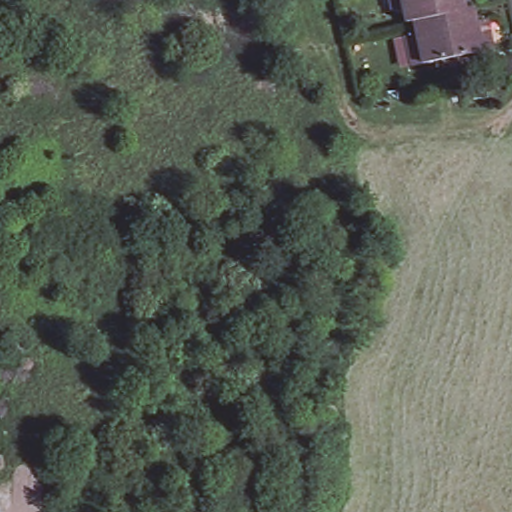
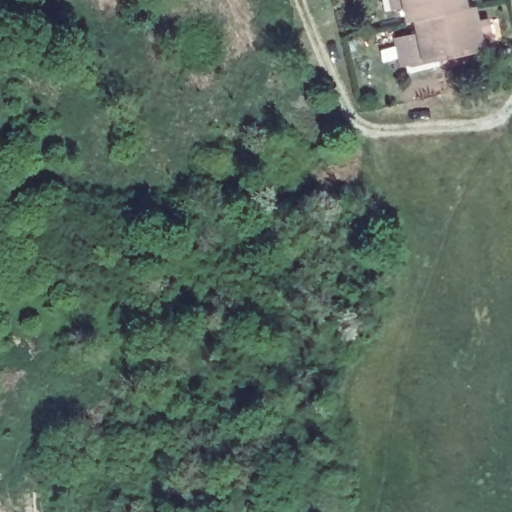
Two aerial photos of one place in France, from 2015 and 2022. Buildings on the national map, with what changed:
unchanged [(434,17),(412,21),(404,23),(402,10),(392,11),(390,0),(431,0),(434,17)]
unchanged [(464,11),(442,16),(434,17),(431,0),(463,0),(464,11)]
unchanged [(490,50),(450,58),(442,16),(464,11),(471,10),(474,23),(485,21),(490,50)]
unchanged [(450,58),(412,67),(405,37),(415,35),(412,21),(434,17),(442,16),(450,58)]

